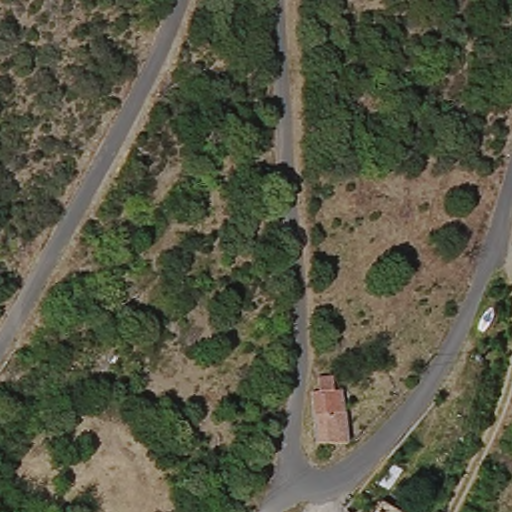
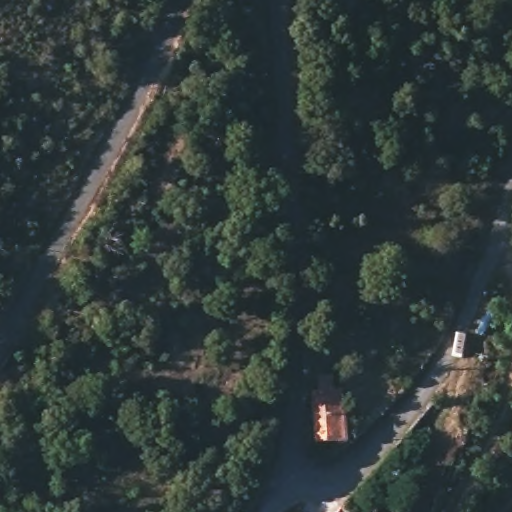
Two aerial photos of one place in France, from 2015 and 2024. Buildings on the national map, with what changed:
unchanged [(323,387),(327,387),(335,386),(335,401),(351,401),(352,416),(350,447),(324,448),(323,387)]
unchanged [(343,504),(331,495),(342,481),(356,491),(346,505),(350,512),(337,512),(343,504)]
unchanged [(397,512),(381,512),(386,504),(397,512)]

